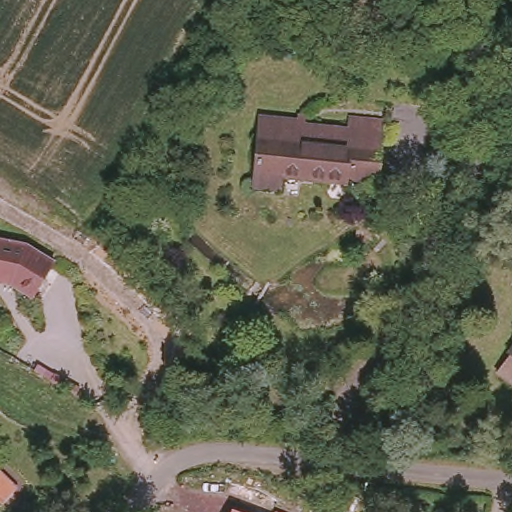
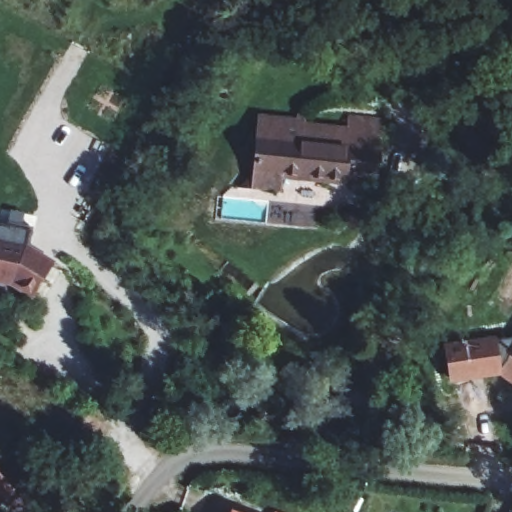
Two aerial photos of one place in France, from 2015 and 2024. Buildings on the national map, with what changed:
unchanged [(384,129),(379,185),(345,182),(343,184),(284,179),(282,192),(256,190),(265,121),(310,125),(358,129),(358,125),(384,129)]
unchanged [(14,283),(0,280),(0,235),(30,242),(57,266),(31,298),(14,283)]
new [(500,376),(448,384),(445,345),(497,338),(512,340),(512,384),(500,376)]
demolished [(505,352),(512,342),(512,357),(505,352)]
unchanged [(0,467),(8,475),(0,483),(0,467)]
unchanged [(237,512),(226,512),(227,507),(237,512)]

